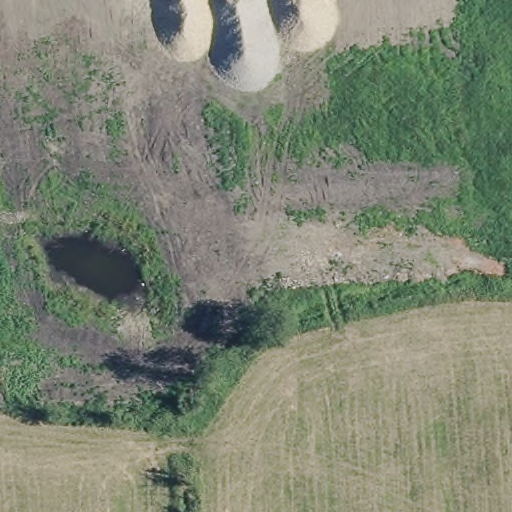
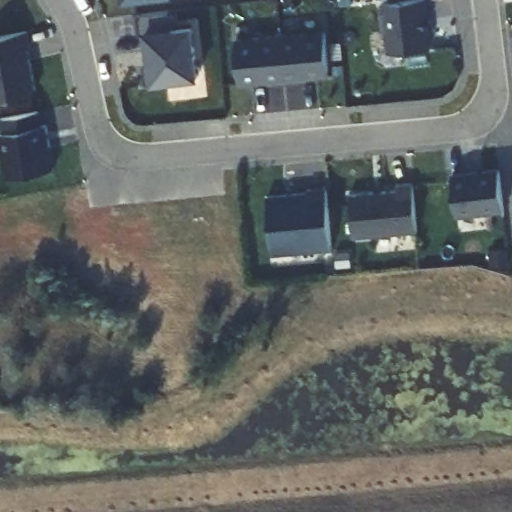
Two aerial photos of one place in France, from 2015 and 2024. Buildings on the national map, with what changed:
new [(381,3),(402,0),(424,0),(426,16),(423,16),(424,27),(425,27),(427,48),(392,51),(386,48),(385,31),(381,31),(379,12),(382,11),(381,3)]
demolished [(149,1),(150,9),(137,11),(136,2),(149,1)]
new [(202,75),(146,81),(139,30),(138,15),(170,11),(171,26),(195,23),(202,75)]
new [(27,49),(25,49),(32,91),(0,97),(0,36),(24,31),(27,49)]
new [(323,32),(327,75),(298,78),(298,80),(282,81),(278,36),(323,32)]
new [(278,36),(282,81),(265,83),(265,81),(237,84),(233,41),(278,36)]
new [(0,121),(0,118),(35,111),(38,126),(42,125),(51,169),(4,178),(0,156),(0,133),(2,133),(0,121)]
new [(497,170),(502,210),(455,215),(450,176),(497,170)]
new [(395,191),(395,185),(411,183),(415,232),(351,238),(347,195),(395,191)]
new [(305,193),(305,190),(325,189),(330,249),(270,254),(265,197),(305,193)]
new [(506,264),(490,266),(488,252),(505,250),(506,264)]
new [(348,251),(350,266),(335,267),(333,253),(348,251)]

